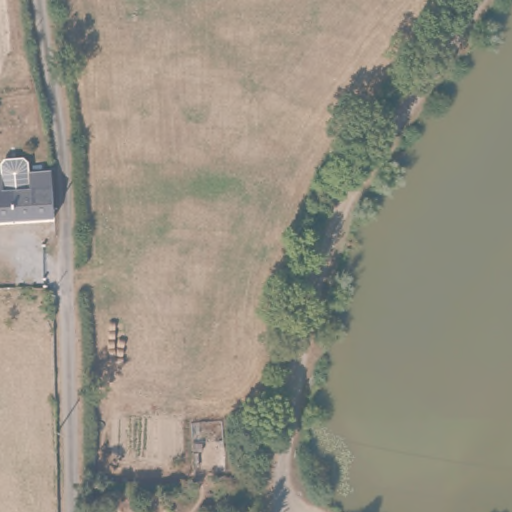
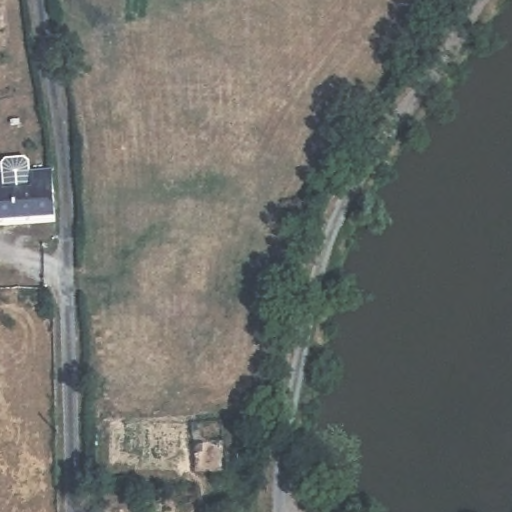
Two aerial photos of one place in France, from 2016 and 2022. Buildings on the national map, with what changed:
unchanged [(3,190),(16,191),(16,177),(50,175),(55,220),(0,222),(0,178),(1,178),(3,190)]

